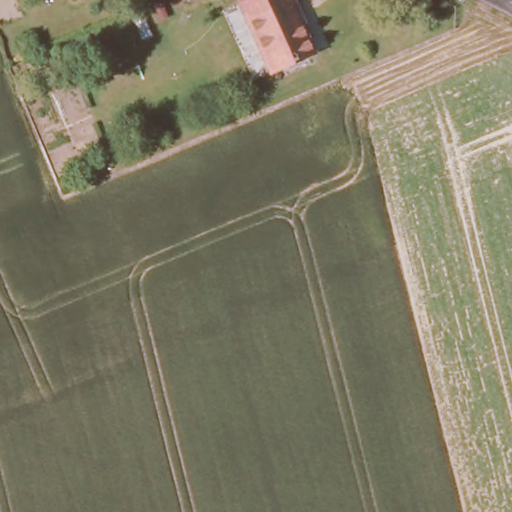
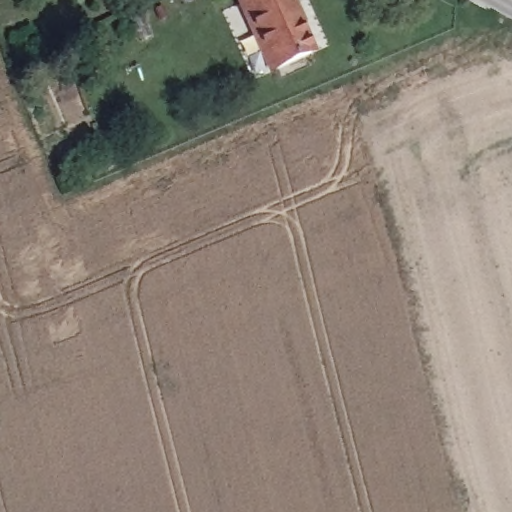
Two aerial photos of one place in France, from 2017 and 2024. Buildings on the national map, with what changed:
unchanged [(289,7),(286,8),(306,55),(268,73),(236,4),(245,0),(286,0),(289,7)]

